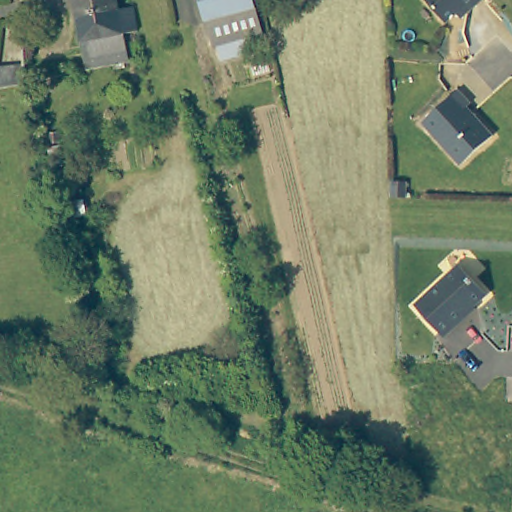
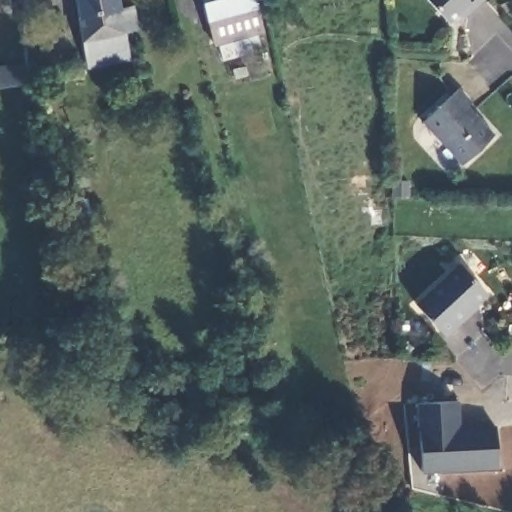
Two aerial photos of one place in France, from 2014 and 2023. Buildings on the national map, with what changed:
unchanged [(120,31),(122,47),(82,56),(73,0),(118,0),(119,2),(132,2),(137,27),(120,31)]
unchanged [(209,23),(202,0),(255,0),(257,7),(267,48),(218,61),(209,23)]
unchanged [(465,12),(460,7),(444,22),(424,0),(477,0),(465,12)]
unchanged [(43,83),(0,89),(0,66),(40,63),(43,83)]
unchanged [(472,103),(468,106),(495,136),(462,166),(423,123),(460,90),(472,103)]
unchanged [(461,265),(487,295),(467,313),(469,315),(445,337),(416,307),(461,265)]
new [(421,471),(417,403),(456,402),(457,428),(495,427),(497,468),(421,471)]

